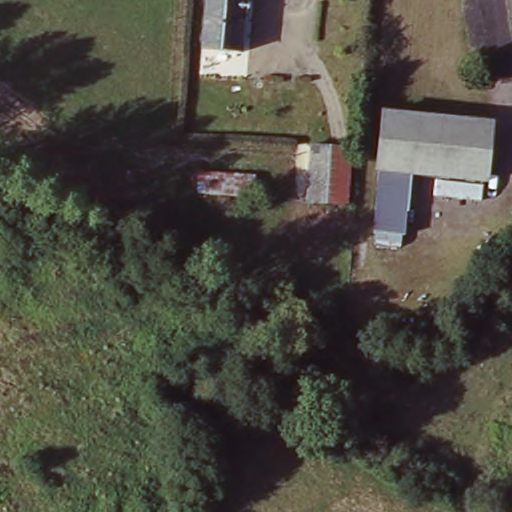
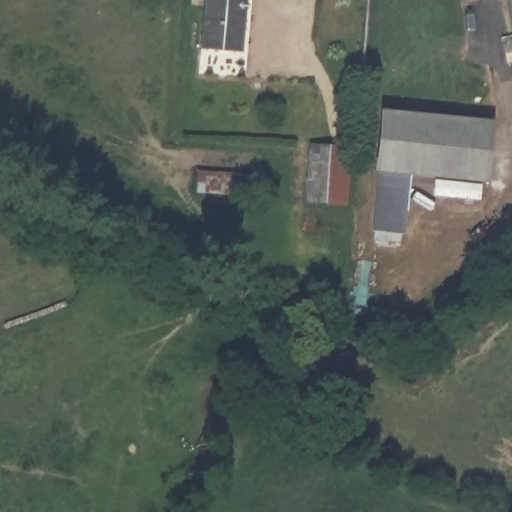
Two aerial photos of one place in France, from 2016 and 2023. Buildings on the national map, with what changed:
unchanged [(240,70),(203,65),(207,0),(246,0),(240,70)]
unchanged [(483,122),(478,180),(378,170),(381,110),(483,122)]
unchanged [(313,142),(351,145),(345,202),(308,198),(313,142)]
unchanged [(257,175),(256,194),(198,190),(198,168),(257,175)]
unchanged [(410,173),(404,234),(373,230),(378,170),(410,173)]

